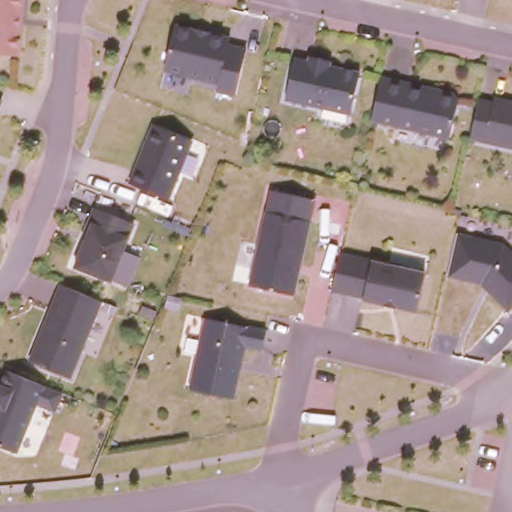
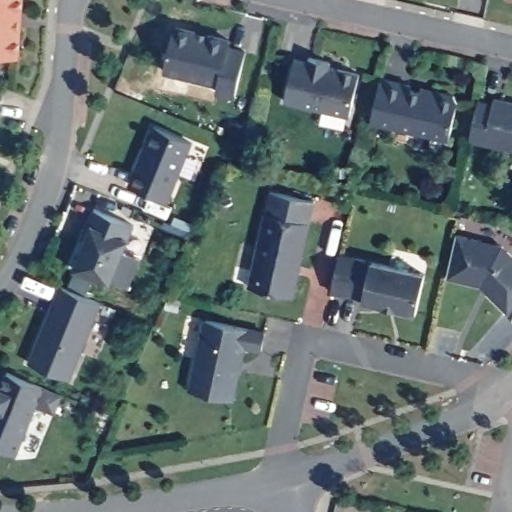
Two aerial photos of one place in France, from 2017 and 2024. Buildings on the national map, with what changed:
unchanged [(21,58),(0,57),(0,0),(25,0),(21,58)]
unchanged [(233,36),(232,44),(247,48),(235,98),(214,93),(215,85),(162,72),(174,25),(233,36)]
unchanged [(307,60),(308,56),(333,61),(332,66),(361,72),(351,116),(284,102),(292,57),(307,60)]
unchanged [(460,94),(450,140),(370,123),(379,76),(460,94)]
unchanged [(494,96),(512,100),(512,151),(469,142),(479,98),(492,100),(494,96)]
unchanged [(3,101),(0,108),(0,100),(3,101)]
unchanged [(152,126),(190,141),(166,203),(126,187),(152,126)]
unchanged [(315,199),(294,296),(247,286),(268,191),(315,199)]
unchanged [(85,240),(80,237),(93,205),(136,222),(110,284),(72,268),(85,240)]
unchanged [(512,252),(512,304),(505,310),(479,284),(446,278),(457,232),(502,242),(512,252)]
unchanged [(427,270),(417,312),(330,293),(339,251),(427,270)]
unchanged [(101,301),(72,377),(29,363),(59,284),(101,301)]
unchanged [(202,317),(266,330),(262,352),(242,349),(233,399),(188,388),(202,317)]
unchanged [(1,382),(5,370),(44,385),(19,453),(0,447),(0,382),(1,382)]

